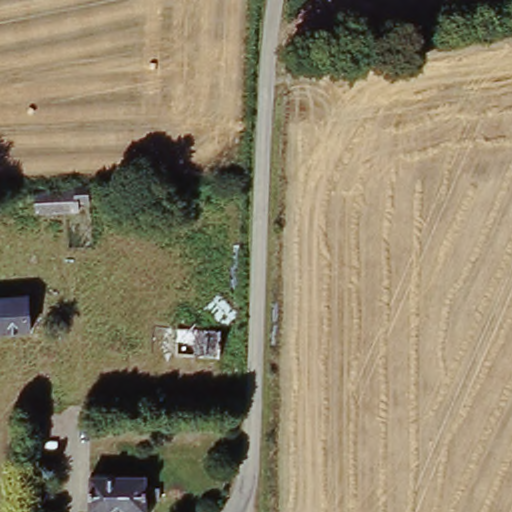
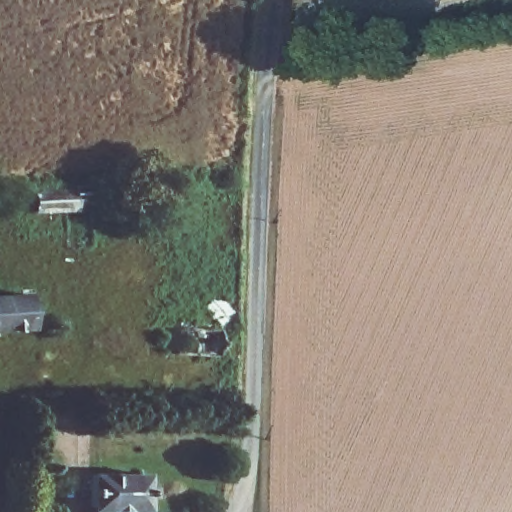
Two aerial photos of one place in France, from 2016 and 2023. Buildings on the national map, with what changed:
unchanged [(70,188),(71,184),(85,183),(86,199),(32,203),(32,190),(70,188)]
unchanged [(30,292),(32,324),(0,327),(0,294),(30,292)]
unchanged [(187,323),(187,329),(222,333),(219,360),(177,357),(179,324),(187,323)]
unchanged [(142,471),(143,484),(154,484),(155,497),(141,496),(140,508),(86,509),(85,472),(142,471)]

